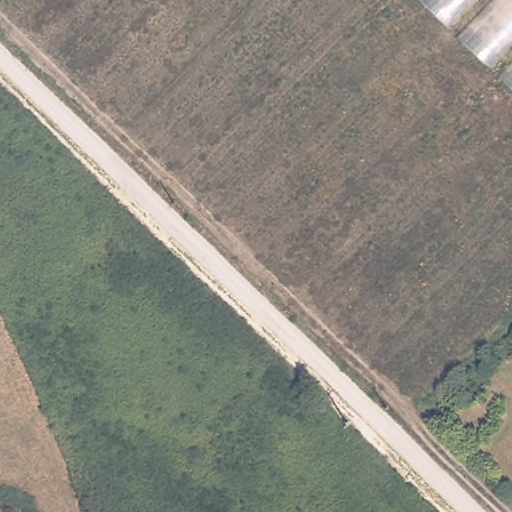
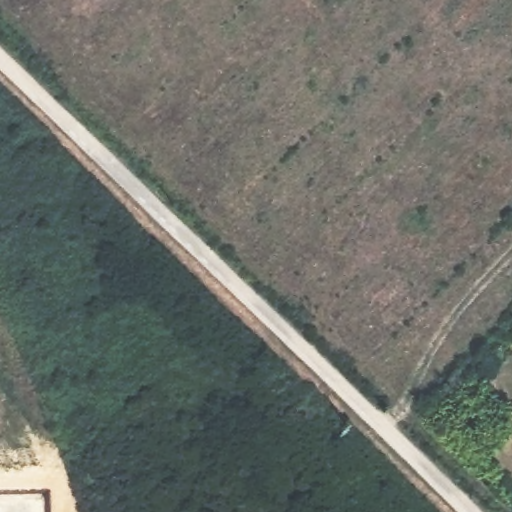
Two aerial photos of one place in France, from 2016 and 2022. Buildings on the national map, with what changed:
demolished [(512,0),(512,92),(414,0),(512,0)]

